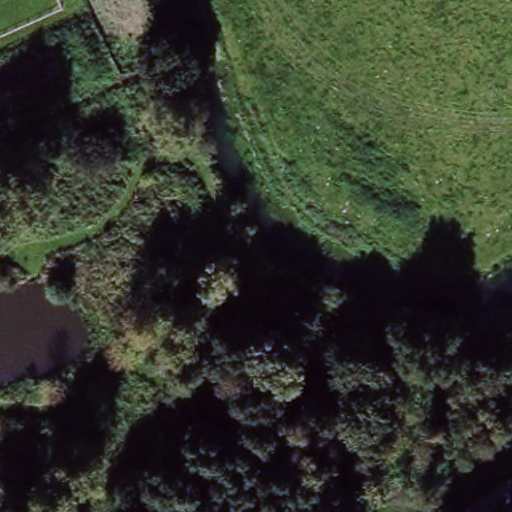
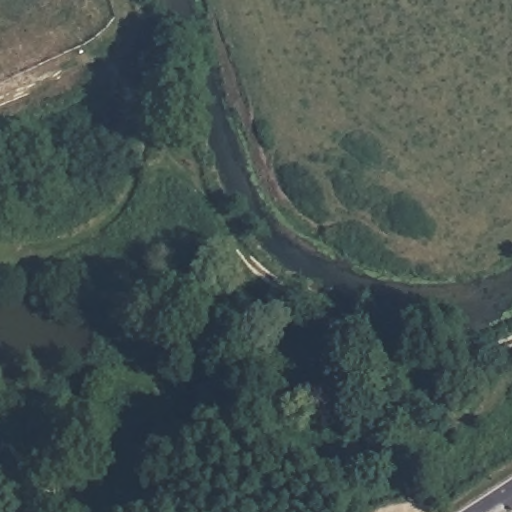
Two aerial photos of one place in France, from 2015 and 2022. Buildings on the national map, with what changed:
[]

